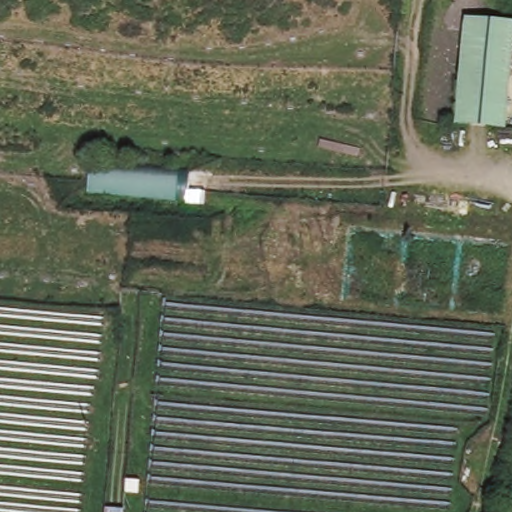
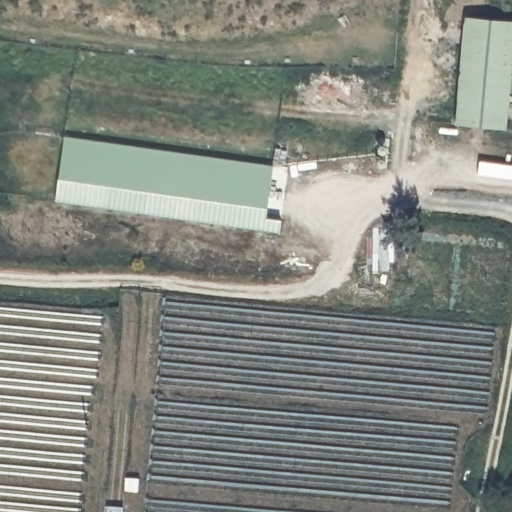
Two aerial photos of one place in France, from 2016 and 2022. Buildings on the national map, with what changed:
unchanged [(512,20),(512,41),(503,129),(450,124),(460,15),(512,20)]
new [(56,200),(65,136),(272,163),(266,217),(280,219),(278,232),(56,200)]
demolished [(90,188),(91,162),(190,171),(188,198),(90,188)]
unchanged [(122,508),(122,512),(100,512),(100,507),(122,508)]

